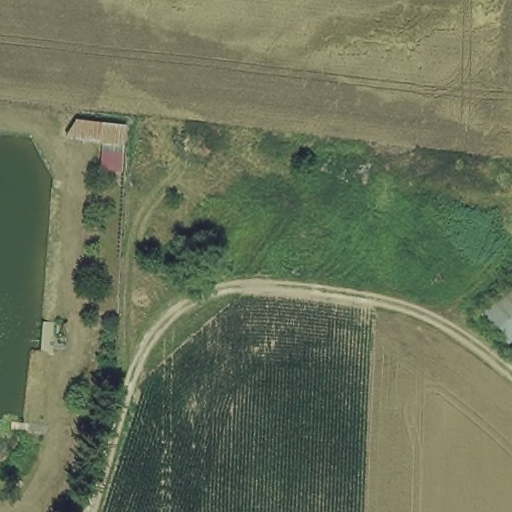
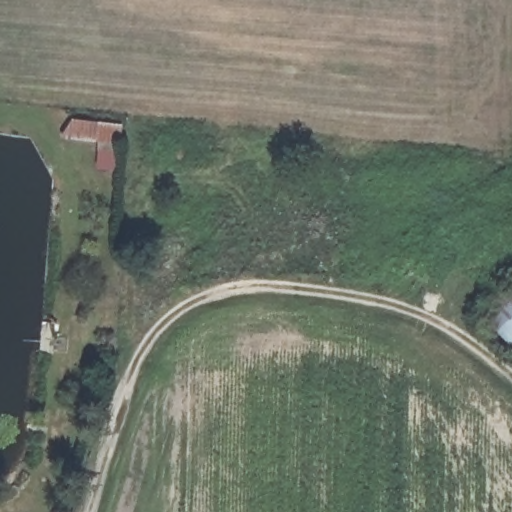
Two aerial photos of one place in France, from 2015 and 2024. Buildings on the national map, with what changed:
unchanged [(122,173),(99,171),(100,143),(62,138),(72,120),(124,125),(122,173)]
unchanged [(512,299),(512,347),(487,321),(512,299)]

